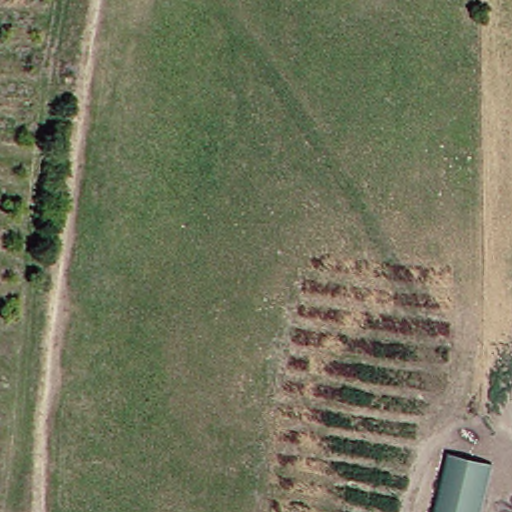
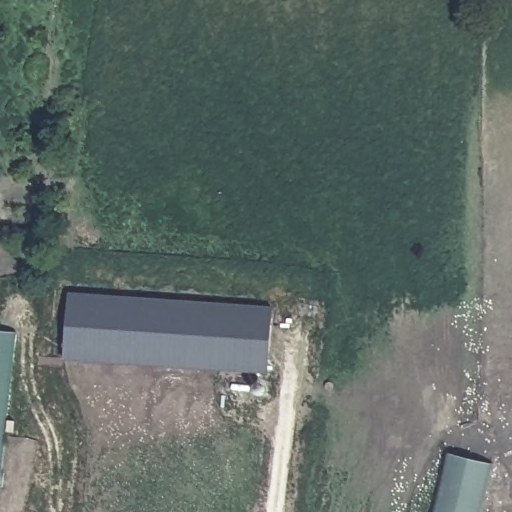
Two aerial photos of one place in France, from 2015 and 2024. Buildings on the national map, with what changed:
new [(272,307),(268,376),(63,361),(68,293),(272,307)]
new [(0,466),(0,332),(15,334),(0,466)]
unchanged [(496,460),(485,512),(440,512),(452,453),(496,460)]

